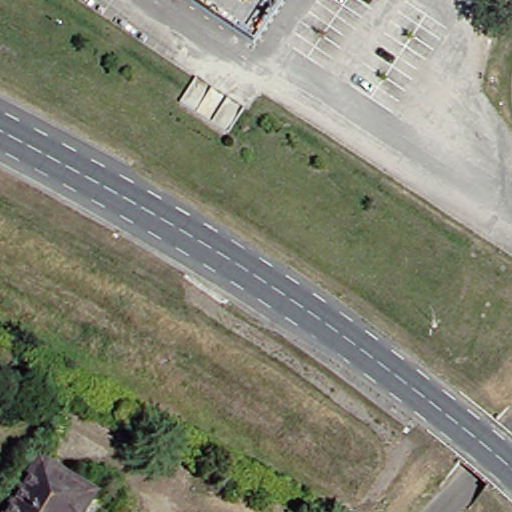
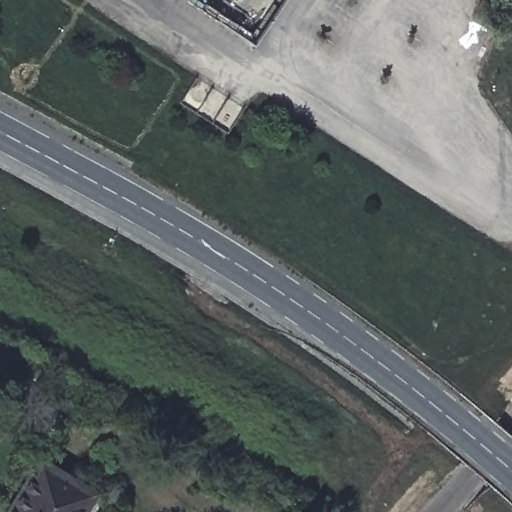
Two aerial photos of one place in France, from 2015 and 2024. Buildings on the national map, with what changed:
unchanged [(40,458),(95,492),(83,512),(7,512),(40,458)]

